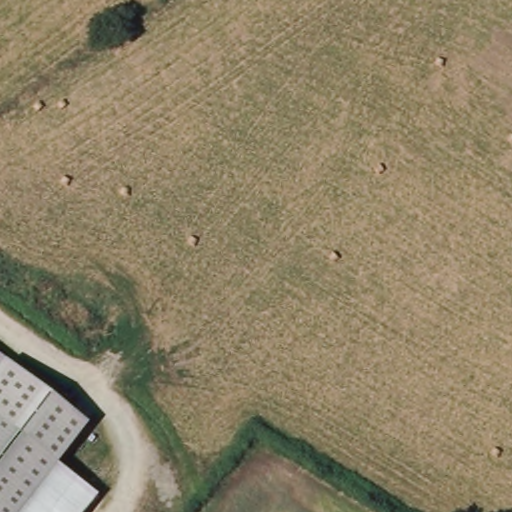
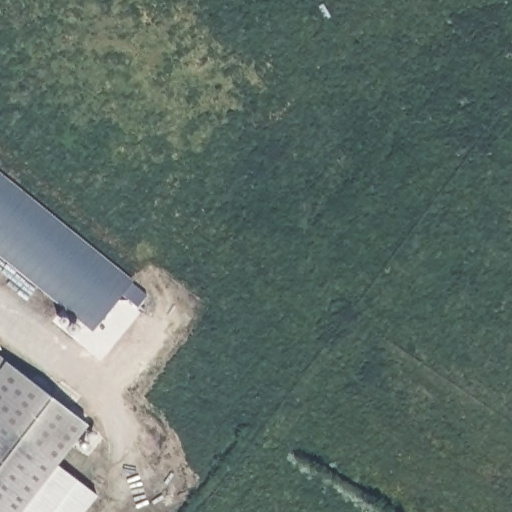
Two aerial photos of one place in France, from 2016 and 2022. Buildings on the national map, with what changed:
new [(123,294),(93,330),(0,255),(0,172),(133,280),(131,282),(146,295),(138,306),(123,294)]
unchanged [(0,360),(86,428),(54,468),(0,428),(0,360)]
unchanged [(91,495),(78,512),(0,512),(0,428),(54,468),(91,495)]

